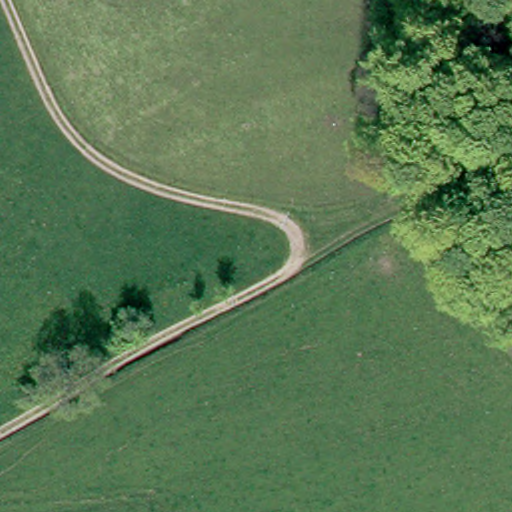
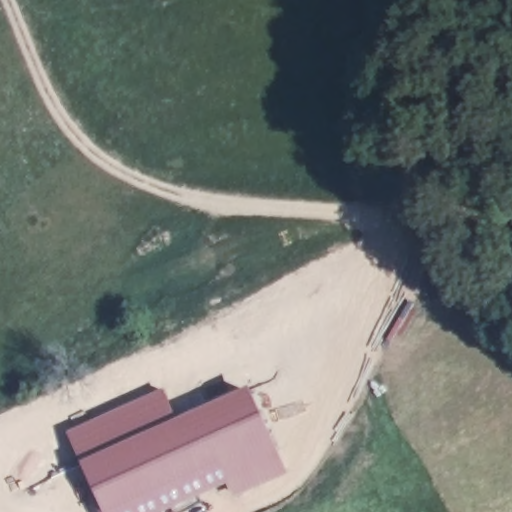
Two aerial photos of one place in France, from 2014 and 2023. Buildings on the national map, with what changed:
new [(175,423),(243,391),(267,442),(220,464),(114,512),(106,512),(84,464),(175,423)]
new [(161,392),(175,423),(84,464),(70,434),(161,392)]
new [(267,442),(281,470),(235,492),(220,464),(267,442)]

